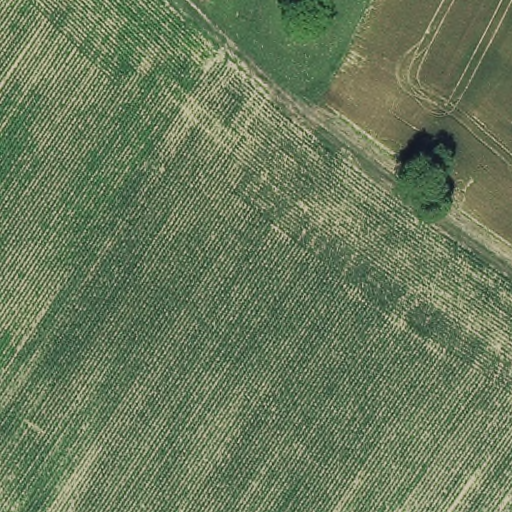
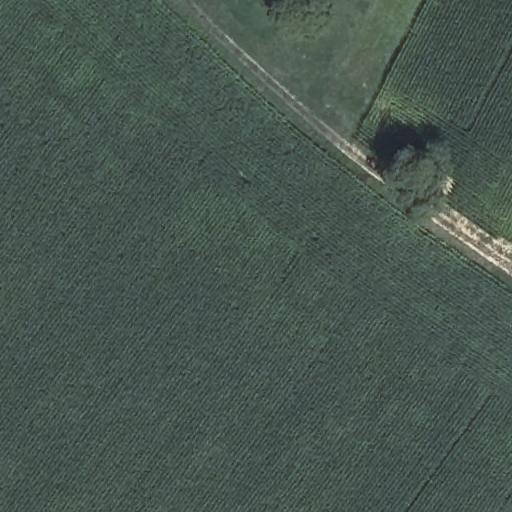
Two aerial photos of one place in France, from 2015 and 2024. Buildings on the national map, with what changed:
[]

